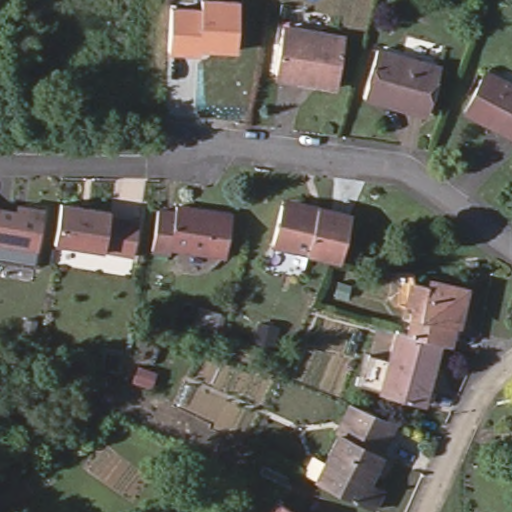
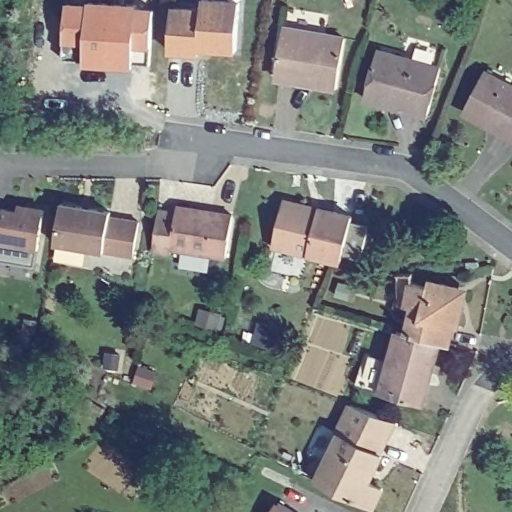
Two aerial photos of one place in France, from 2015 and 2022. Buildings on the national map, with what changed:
new [(87,4),(87,0),(115,1),(114,4),(136,5),(136,8),(153,9),(152,45),(150,65),(132,61),(132,66),(110,64),(110,67),(84,65),(84,59),(63,58),(64,41),(66,3),(87,4)]
unchanged [(236,53),(202,51),(201,57),(169,54),(172,6),(201,9),(201,0),(212,0),(241,2),(236,53)]
unchanged [(297,74),(276,69),(287,25),(349,40),(336,89),(314,84),(296,80),(297,74)]
unchanged [(392,106),(369,102),(377,52),(439,62),(432,110),(408,105),(407,109),(392,106)]
unchanged [(512,84),(512,134),(471,113),(491,73),(512,84)]
unchanged [(347,261),(337,259),(277,246),(286,208),(287,201),(322,209),(357,217),(347,261)]
unchanged [(16,203),(33,206),(42,207),(33,265),(31,265),(0,260),(0,206),(15,209),(16,203)]
unchanged [(110,214),(109,219),(139,224),(133,259),(52,246),(59,205),(110,214)]
unchanged [(182,209),(237,218),(231,263),(175,253),(174,258),(157,255),(162,223),(163,214),(181,216),(182,209)]
unchanged [(469,260),(469,268),(456,268),(457,260),(469,260)]
unchanged [(411,331),(419,299),(414,296),(420,277),(432,281),(434,276),(450,280),(449,286),(458,288),(467,296),(464,307),(470,310),(465,327),(459,325),(454,343),(441,339),(411,331)]
unchanged [(429,380),(433,382),(427,402),(384,389),(402,328),(411,331),(441,339),(429,380)]
unchanged [(403,424),(387,455),(347,434),(345,433),(359,406),(403,424)]
unchanged [(332,464),(347,434),(387,455),(389,456),(375,483),(387,491),(379,510),(344,492),(331,485),(323,481),(332,464)]
unchanged [(295,512),(279,512),(284,504),(295,512)]

